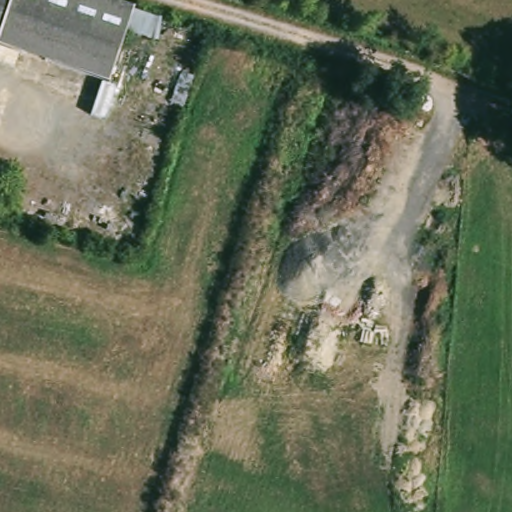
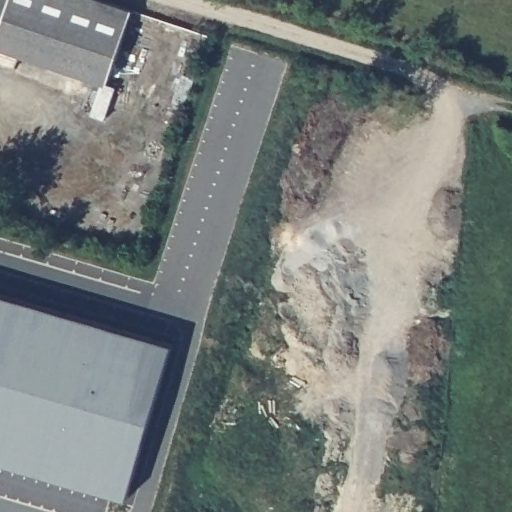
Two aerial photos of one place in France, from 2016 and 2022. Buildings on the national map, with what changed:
unchanged [(0,40),(0,0),(13,0),(0,40)]
unchanged [(110,83),(0,45),(0,40),(13,0),(110,0),(136,9),(110,83)]
new [(0,460),(0,292),(173,343),(130,498),(0,460)]

